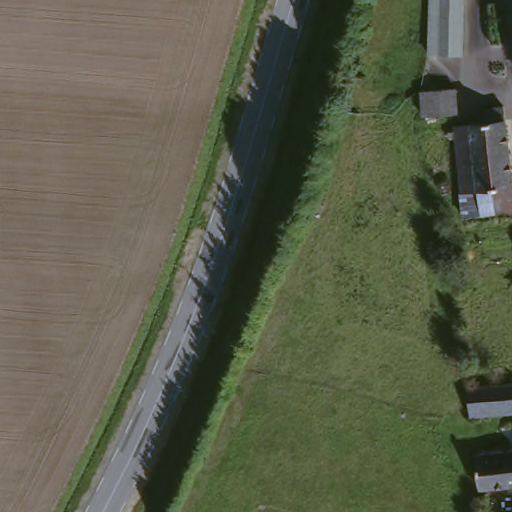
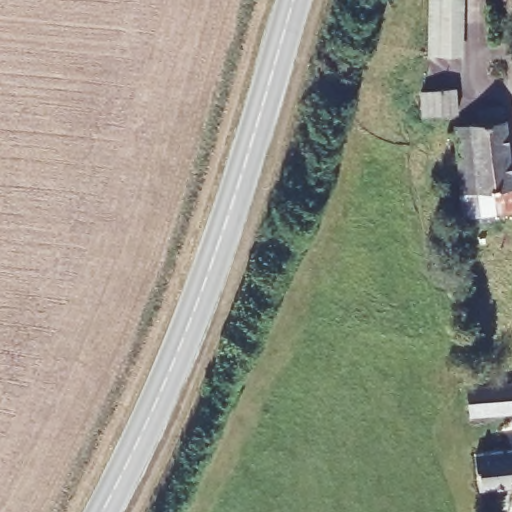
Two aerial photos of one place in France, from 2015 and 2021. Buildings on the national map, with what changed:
unchanged [(456,55),(426,53),(427,0),(457,0),(456,55)]
unchanged [(458,95),(458,119),(438,119),(422,117),(422,94),(458,95)]
unchanged [(512,196),(459,199),(452,134),(484,132),(505,130),(512,191),(512,196)]
unchanged [(459,199),(512,196),(512,220),(462,222),(459,199)]
unchanged [(512,401),(512,415),(480,416),(467,417),(464,390),(511,387),(512,401)]
unchanged [(473,457),(483,456),(512,453),(512,486),(478,489),(473,457)]

